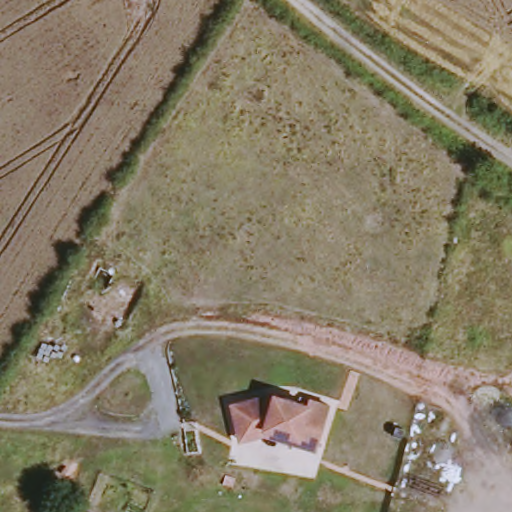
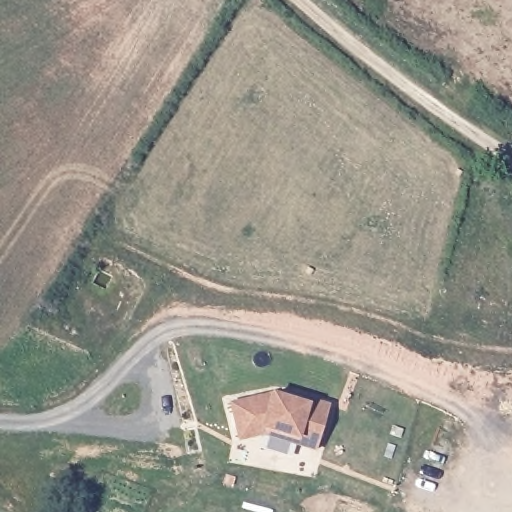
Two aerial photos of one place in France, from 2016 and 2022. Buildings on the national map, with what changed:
unchanged [(246,439),(245,432),(242,400),(287,393),(318,404),(320,399),(340,406),(322,461),(303,452),(267,441),(246,439)]

